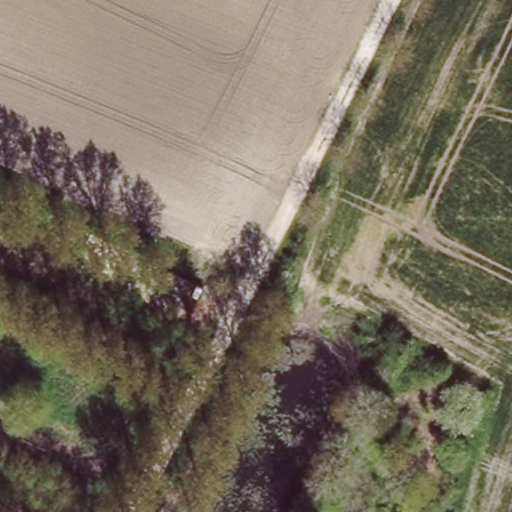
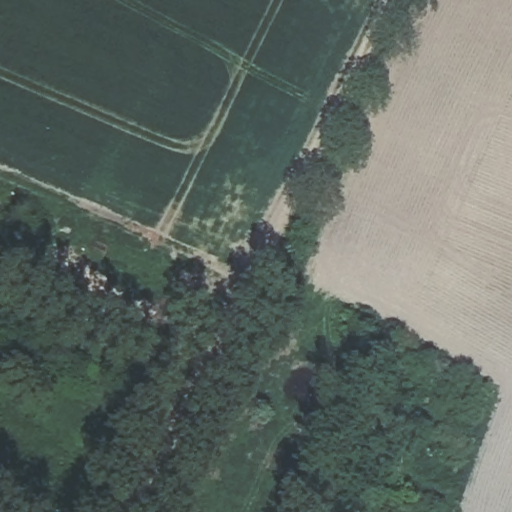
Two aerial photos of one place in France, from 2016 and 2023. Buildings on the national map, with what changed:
[]

